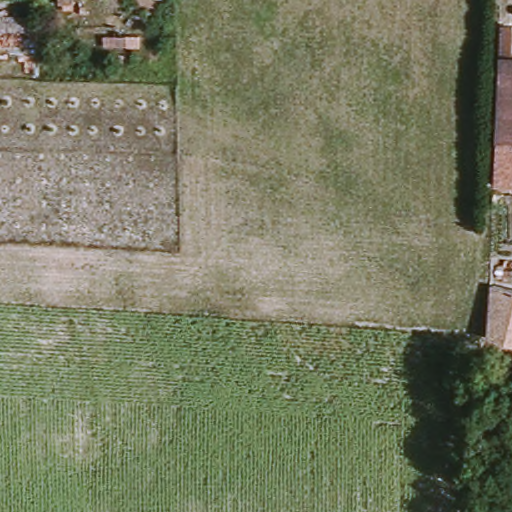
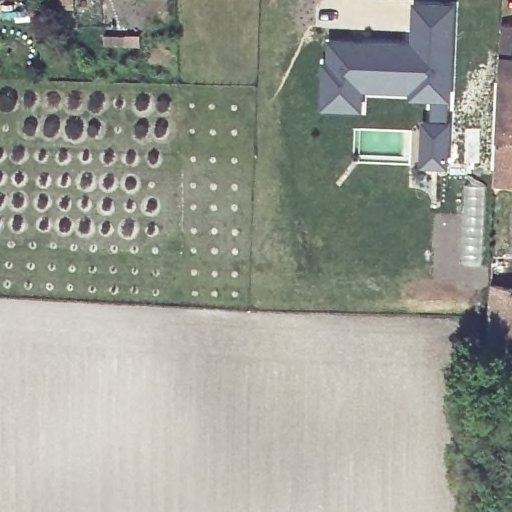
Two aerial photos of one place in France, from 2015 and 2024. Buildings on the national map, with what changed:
new [(357,110),(318,109),(321,65),(326,65),(327,44),(350,45),(357,46),(358,44),(410,46),(411,6),(449,7),(446,100),(407,98),(407,92),(357,90),(357,110)]
unchanged [(502,157),(503,155),(503,130),(505,60),(512,60),(512,159),(502,159),(502,157)]
new [(418,123),(442,125),(441,166),(417,165),(418,123)]
unchanged [(497,332),(510,282),(511,280),(512,280),(512,336),(508,336),(497,332)]

